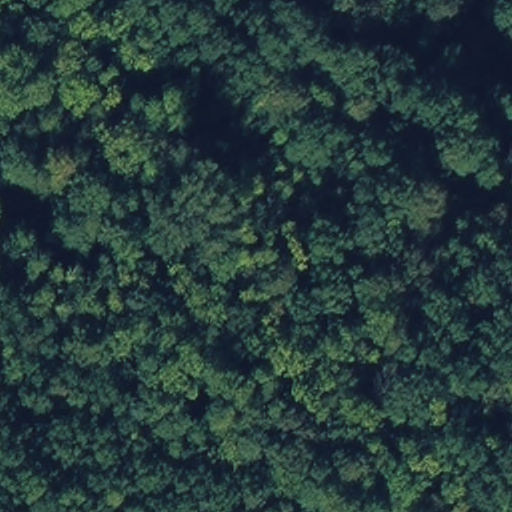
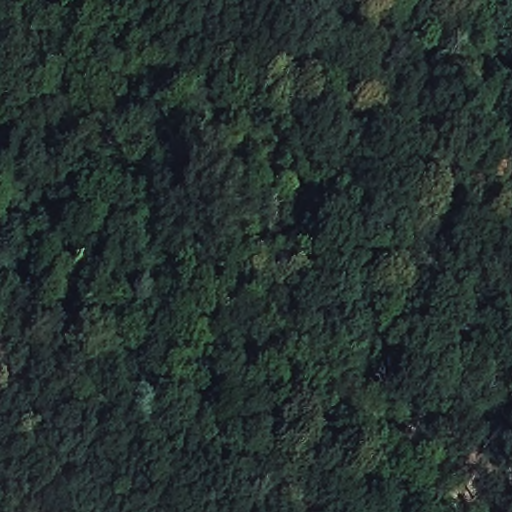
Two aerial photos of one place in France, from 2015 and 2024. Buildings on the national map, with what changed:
[]

